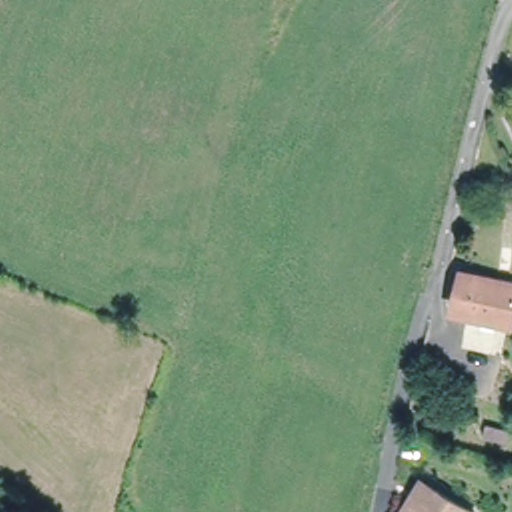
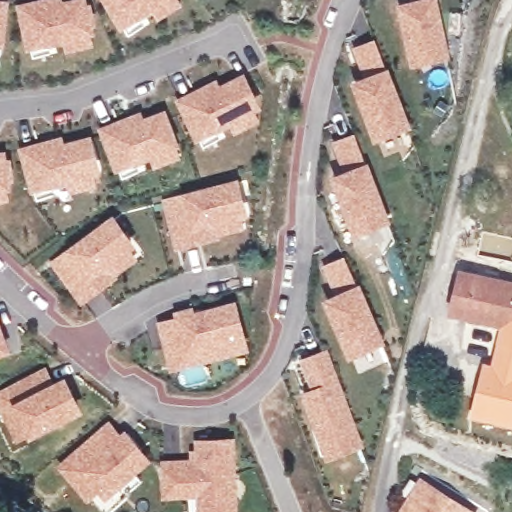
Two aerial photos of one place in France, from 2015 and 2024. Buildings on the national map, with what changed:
new [(6,46),(0,46),(0,0),(9,0),(6,46)]
new [(89,3),(92,2),(98,25),(94,26),(97,34),(92,35),(94,43),(68,49),(65,40),(29,48),(17,3),(29,0),(64,0),(88,0),(89,3)]
new [(183,3),(160,17),(154,8),(122,29),(103,0),(181,0),(183,3)]
new [(451,57),(412,65),(398,3),(410,0),(439,0),(451,57)]
new [(387,68),(390,67),(412,126),(375,139),(354,80),(364,76),(353,47),(376,37),(387,68)]
new [(221,84),(245,70),(263,107),(257,111),(261,119),(237,131),(231,123),(197,140),(176,98),(217,77),(221,84)]
new [(145,117),(166,108),(181,145),(178,146),(182,154),(156,165),(152,156),(116,171),(98,127),(142,109),(145,117)]
new [(366,163),(370,161),(392,220),(356,237),(332,177),(343,171),(333,142),(354,132),(366,163)]
new [(63,133),(65,141),(91,133),(103,172),(95,175),(98,184),(71,191),(68,181),(33,191),(18,147),(63,133)]
new [(8,157),(11,156),(15,181),(11,182),(13,189),(10,189),(11,200),(0,202),(0,150),(7,149),(8,157)]
new [(239,176),(250,215),(241,218),(244,230),(176,249),(162,199),(239,176)]
new [(81,304),(49,262),(114,213),(137,245),(132,249),(137,258),(81,304)]
new [(344,255),(357,283),(361,282),(386,342),(350,358),(325,298),(337,293),(324,265),(344,255)]
unchanged [(512,328),(452,311),(461,272),(512,284),(512,328)]
new [(175,316),(173,310),(194,305),(196,310),(237,298),(250,351),(170,369),(158,322),(175,316)]
new [(0,355),(0,316),(11,351),(0,355)]
new [(469,417),(483,362),(490,365),(500,324),(512,328),(512,427),(469,417)]
new [(328,348),(365,444),(327,458),(302,392),(312,387),(300,358),(328,348)]
new [(67,375),(84,412),(30,438),(28,435),(16,440),(0,406),(0,388),(47,365),(54,382),(67,375)]
new [(127,427),(151,460),(136,474),(142,481),(107,512),(104,512),(91,497),(60,461),(110,419),(122,431),(127,427)]
new [(189,448),(196,448),(196,437),(236,437),(240,512),(199,512),(198,496),(163,497),(161,458),(190,457),(189,448)]
unchanged [(471,512),(398,512),(419,478),(472,511),(471,512)]

